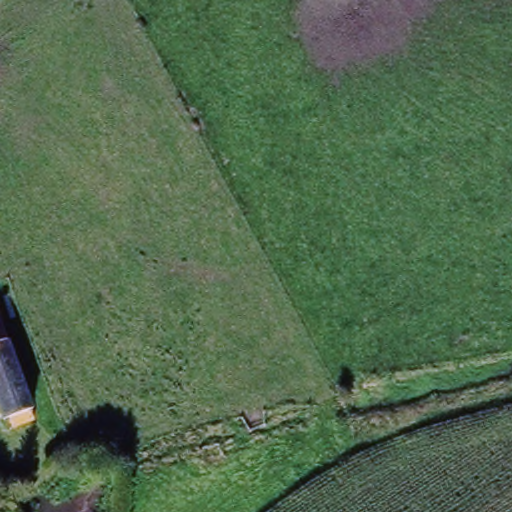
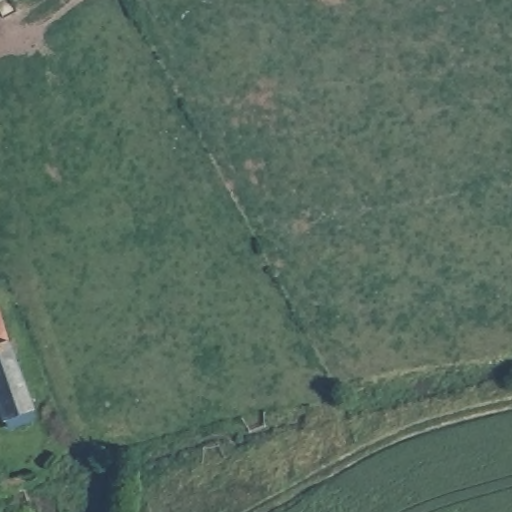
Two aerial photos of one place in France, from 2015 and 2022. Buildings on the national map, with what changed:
unchanged [(0,414),(0,328),(31,417),(10,422),(8,415),(1,417),(0,414)]

